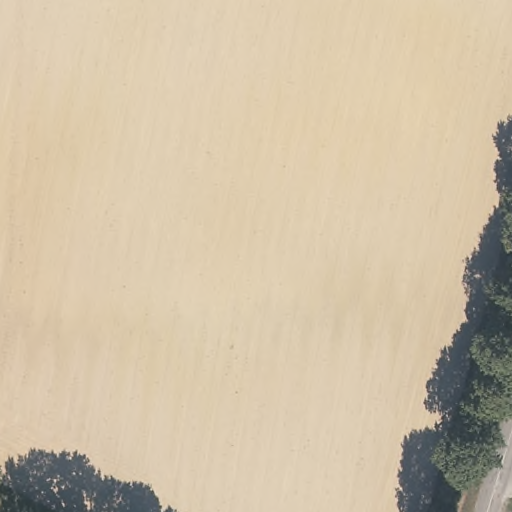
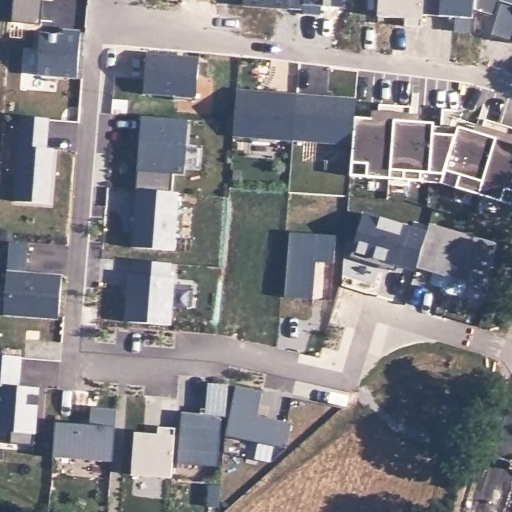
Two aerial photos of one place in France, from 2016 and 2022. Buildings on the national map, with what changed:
new [(282,5),(241,3),(242,0),(303,0),(302,7),(282,5)]
new [(420,17),(375,12),(376,0),(421,0),(420,17)]
new [(37,74),(41,31),(64,33),(64,28),(83,30),(77,77),(37,74)]
new [(140,94),(145,51),(200,57),(195,99),(140,94)]
new [(478,194),(420,180),(350,175),(353,145),(235,135),(239,88),(357,97),(355,117),(378,119),(380,103),(413,106),(411,121),(437,125),(440,108),(461,109),(460,125),(481,130),(485,118),(512,128),(512,142),(512,205),(478,194)]
new [(185,172),(172,171),(171,189),(179,190),(175,246),(130,242),(141,116),(189,120),(185,172)]
new [(14,199),(20,118),(49,120),(47,146),(57,146),(52,201),(14,199)]
new [(430,221),(496,240),(485,286),(418,266),(430,221)]
new [(59,318),(2,312),(8,241),(27,242),(25,271),(62,273),(59,318)]
new [(130,274),(134,275),(135,261),(170,263),(169,277),(173,278),(170,324),(126,321),(130,274)]
new [(36,444),(12,444),(13,430),(0,429),(0,356),(21,357),(18,387),(40,388),(36,432),(36,444)]
new [(285,446),(227,433),(235,385),(261,389),(257,415),(291,421),(285,446)]
new [(55,422),(95,425),(97,408),(116,409),(112,461),(52,457),(55,422)]
new [(178,460),(182,409),(222,413),(216,463),(178,460)]
new [(135,433),(157,435),(159,427),(175,428),(171,478),(131,474),(135,433)]

